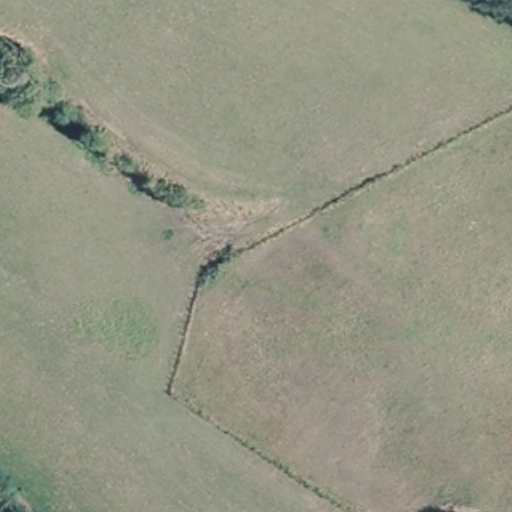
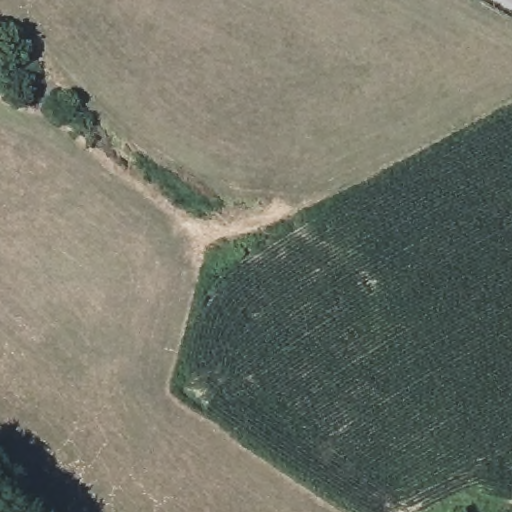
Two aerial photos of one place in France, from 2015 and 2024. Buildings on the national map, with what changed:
[]

